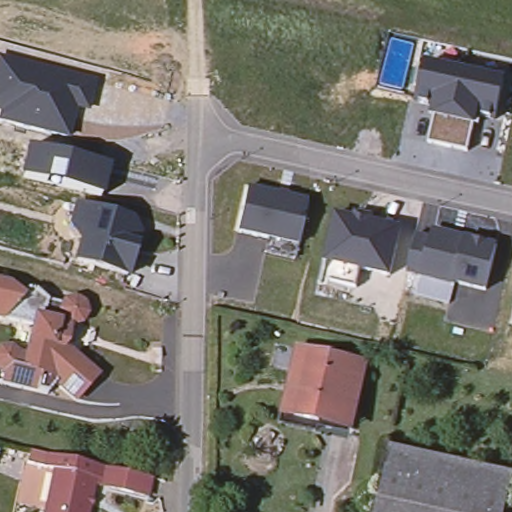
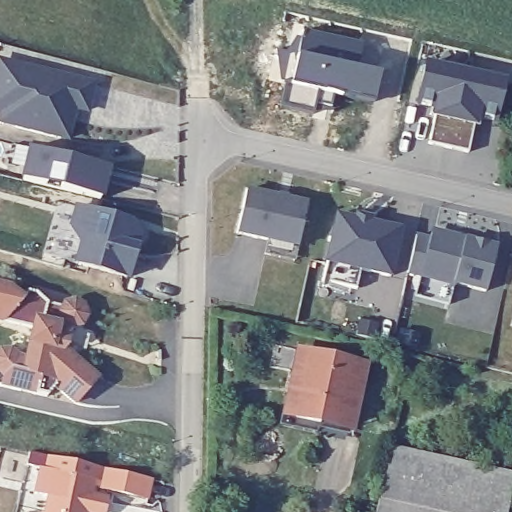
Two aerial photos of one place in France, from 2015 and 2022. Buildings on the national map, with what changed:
new [(364,42),(360,62),(384,67),(378,99),(295,81),(305,27),(364,42)]
unchanged [(96,84),(89,114),(77,111),(70,141),(0,124),(0,60),(96,84)]
unchanged [(442,64),(464,69),(505,79),(496,117),(477,113),(469,149),(447,144),(429,140),(437,104),(434,104),(417,100),(427,61),(442,64)]
unchanged [(29,148),(111,167),(103,198),(21,179),(29,148)]
unchanged [(247,187),(307,201),(297,244),(294,263),(265,255),(265,244),(236,233),(247,187)]
unchanged [(74,262),(85,204),(141,217),(130,273),(74,262)]
unchanged [(327,264),(339,213),(354,217),(355,214),(375,217),(375,222),(402,227),(390,278),(358,272),(355,291),(322,288),(327,264)]
unchanged [(449,301),(415,291),(416,287),(417,287),(420,272),(425,256),(432,231),(437,227),(450,231),(454,237),(465,240),(465,235),(497,243),(490,270),(486,287),(455,279),(455,281),(450,295),(449,301)]
unchanged [(17,340),(20,326),(0,321),(0,281),(25,288),(30,284),(56,299),(70,295),(79,296),(85,302),(90,308),(89,314),(85,320),(80,325),(74,330),(70,345),(98,379),(72,402),(52,382),(45,392),(0,381),(0,350),(17,340)]
unchanged [(317,418),(315,427),(279,418),(287,382),(292,362),(296,346),(310,349),(365,362),(356,397),(350,426),(317,418)]
unchanged [(383,471),(388,447),(512,473),(507,498),(383,471)]
unchanged [(39,465),(42,452),(100,466),(147,476),(144,493),(90,482),(85,506),(43,496),(50,467),(39,465)]
unchanged [(377,499),(383,471),(507,498),(503,512),(436,512),(377,499)]
unchanged [(43,496),(85,506),(84,512),(39,512),(43,496)]
unchanged [(377,499),(436,512),(374,512),(377,499)]

